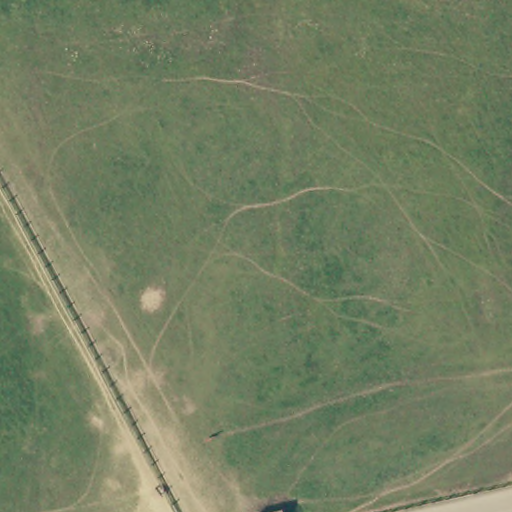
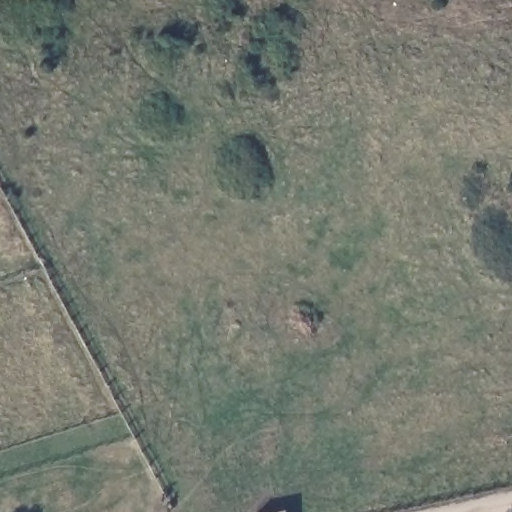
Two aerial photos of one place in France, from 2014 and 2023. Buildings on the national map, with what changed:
unchanged [(287,512),(269,512),(286,508),(287,512)]

